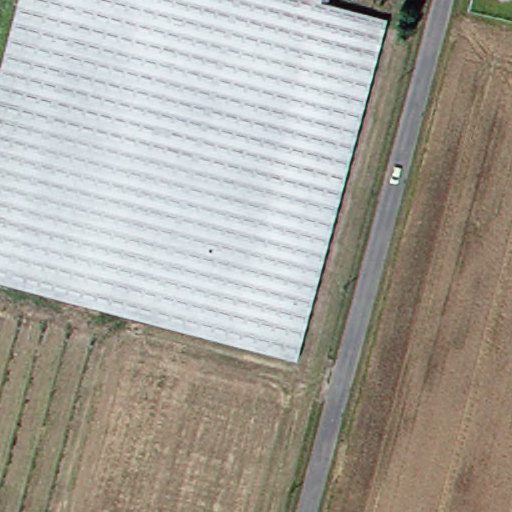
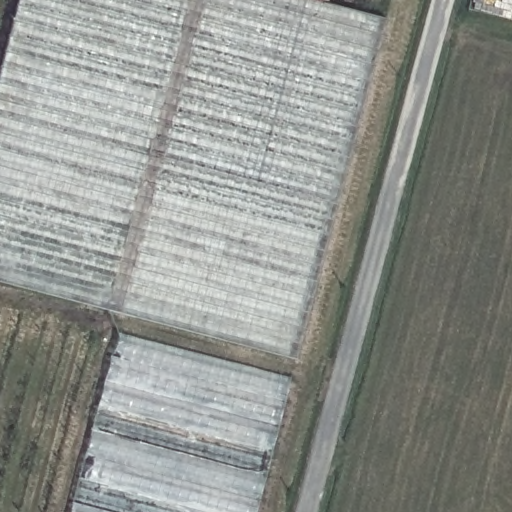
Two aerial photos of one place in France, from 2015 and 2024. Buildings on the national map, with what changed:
unchanged [(385,22),(295,364),(0,286),(0,69),(19,0),(310,0),(316,1),(385,22)]
new [(256,512),(69,512),(118,334),(291,380),(256,512)]

